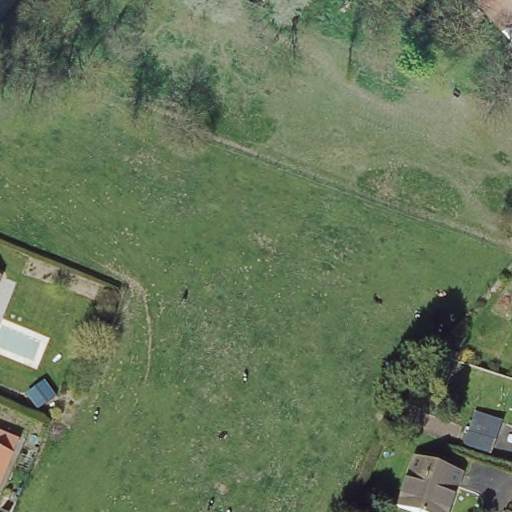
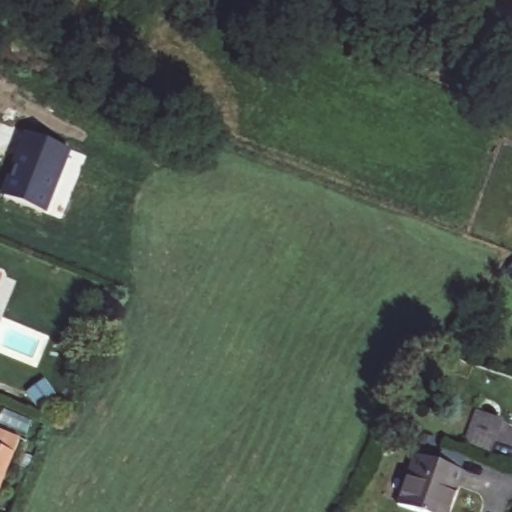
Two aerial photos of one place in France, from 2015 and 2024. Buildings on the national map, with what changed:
unchanged [(487,0),(512,0),(512,31),(508,35),(482,5),(487,0)]
new [(0,194),(24,133),(72,150),(47,212),(0,194)]
unchanged [(468,412),(502,422),(492,452),(458,441),(468,412)]
unchanged [(0,495),(0,433),(22,442),(0,495)]
unchanged [(413,461),(415,455),(458,469),(456,475),(445,512),(432,512),(401,502),(413,461)]

